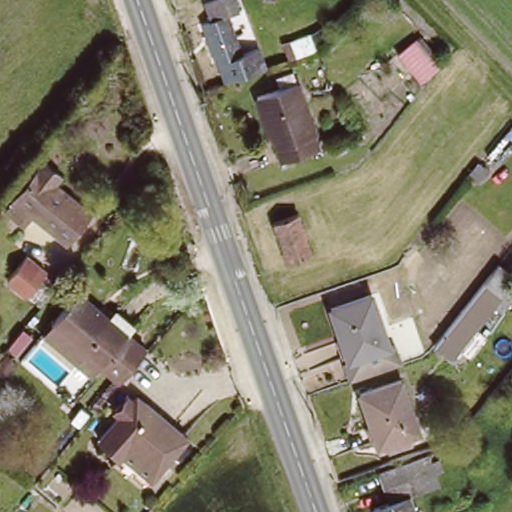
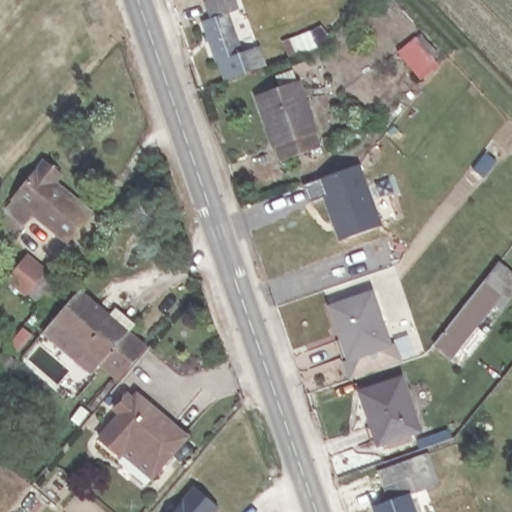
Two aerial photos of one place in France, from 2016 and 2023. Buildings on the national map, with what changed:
unchanged [(203,27),(210,25),(202,4),(215,0),(233,0),(238,17),(231,20),(239,42),(211,52),(203,27)]
unchanged [(222,66),(217,68),(211,52),(239,42),(244,55),(252,52),(260,73),(228,84),(222,66)]
unchanged [(440,50),(453,63),(441,77),(445,81),(435,93),(406,67),(416,55),(426,64),(440,50)]
unchanged [(283,89),(281,81),(296,77),(322,151),(282,165),(258,98),(283,89)]
new [(341,242),(325,197),(311,202),(305,185),(360,163),(385,226),(341,242)]
unchanged [(3,217),(16,200),(41,169),(92,215),(67,246),(31,215),(19,230),(3,217)]
demolished [(281,240),(274,221),(298,211),(305,230),(313,252),(288,261),(281,240)]
unchanged [(63,288),(45,311),(14,285),(31,262),(63,288)]
unchanged [(512,270),(512,280),(508,285),(497,277),(505,265),(512,270)]
unchanged [(512,309),(508,313),(497,305),(480,328),(491,336),(477,356),(466,347),(458,358),(438,343),(485,280),(505,295),(512,301),(512,309)]
unchanged [(328,300),(370,286),(395,360),(355,375),(328,300)]
unchanged [(146,350),(120,383),(98,365),(90,374),(45,334),(80,291),(146,350)]
unchanged [(371,420),(365,398),(405,385),(412,405),(422,436),(381,450),(371,420)]
unchanged [(190,437),(156,477),(128,453),(125,456),(105,437),(123,415),(115,408),(128,392),(135,398),(140,393),(190,437)]
unchanged [(392,503),(382,475),(431,458),(441,486),(415,495),(420,512),(378,512),(376,508),(392,503)]
new [(220,506),(216,512),(175,512),(195,486),(220,506)]

